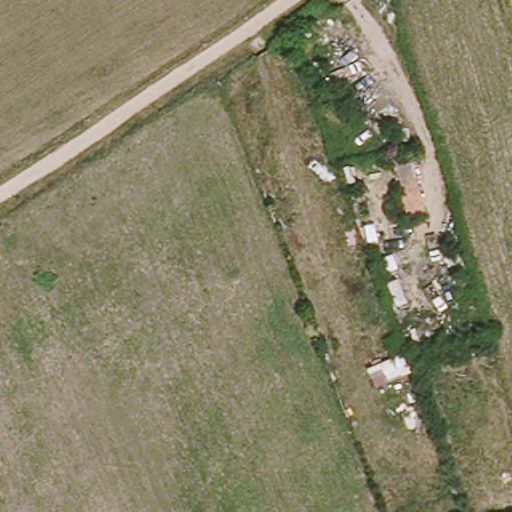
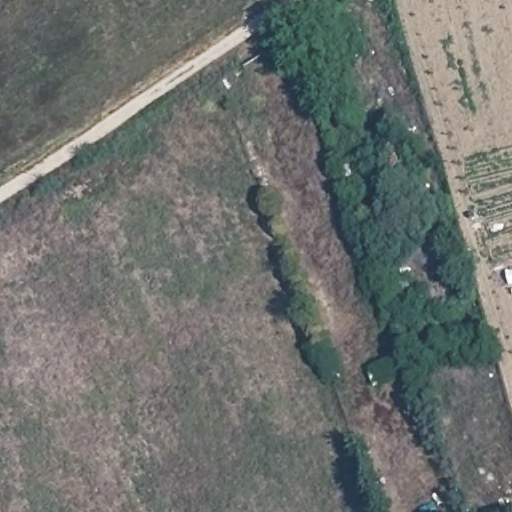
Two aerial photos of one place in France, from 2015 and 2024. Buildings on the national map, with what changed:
unchanged [(425,166),(428,200),(403,202),(399,169),(425,166)]

